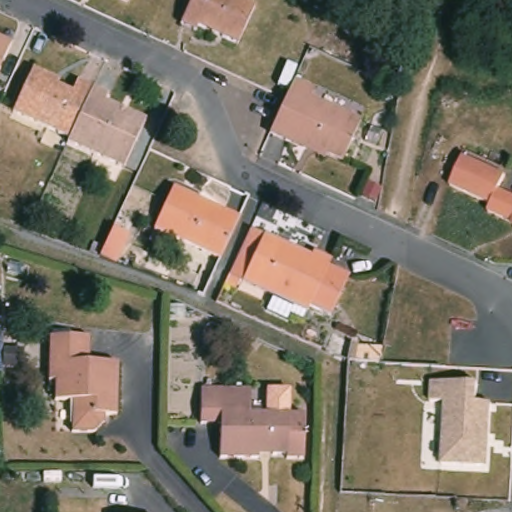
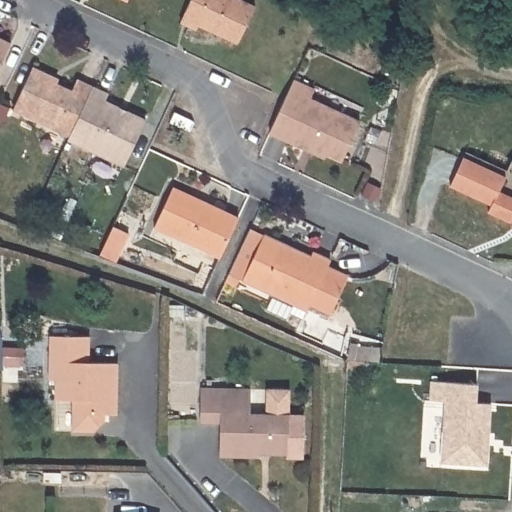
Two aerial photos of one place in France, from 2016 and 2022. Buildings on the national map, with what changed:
unchanged [(129,1),(125,0),(129,0),(129,1)]
unchanged [(187,0),(235,0),(251,7),(235,42),(195,25),(193,29),(176,22),(187,0)]
unchanged [(8,48),(0,64),(0,45),(8,48)]
unchanged [(70,136),(12,108),(33,65),(51,74),(48,80),(71,91),(78,78),(94,85),(70,136)]
unchanged [(293,84),(314,95),(310,103),(360,129),(342,163),(307,147),(302,149),(270,133),(283,106),(293,84)]
unchanged [(70,136),(94,85),(107,91),(105,97),(148,116),(125,165),(68,140),(70,136)]
unchanged [(507,159),(512,162),(512,226),(482,211),(486,204),(445,185),(458,156),(499,176),(507,159)]
unchanged [(155,226),(174,185),(239,215),(220,256),(155,226)]
unchanged [(337,300),(329,316),(309,307),(302,320),(289,313),(286,319),(265,311),(272,296),(241,281),(237,289),(226,284),(229,275),(230,273),(231,270),(250,230),(311,258),(313,253),(330,261),(328,266),(348,276),(337,300)]
unchanged [(327,328),(346,333),(346,340),(346,351),(344,351),(323,346),(327,328)]
unchanged [(90,370),(117,372),(116,419),(106,419),(106,427),(95,433),(72,433),(73,403),(56,402),(56,384),(51,384),(52,341),(91,343),(90,370)]
unchanged [(476,386),(475,404),(490,405),(488,435),(484,435),(483,461),(476,467),(439,465),(443,403),(428,402),(430,383),(476,386)]
unchanged [(200,390),(249,390),(248,415),(302,415),(300,458),(282,458),(282,455),(256,455),(255,459),(219,458),(219,425),(199,424),(200,390)]

